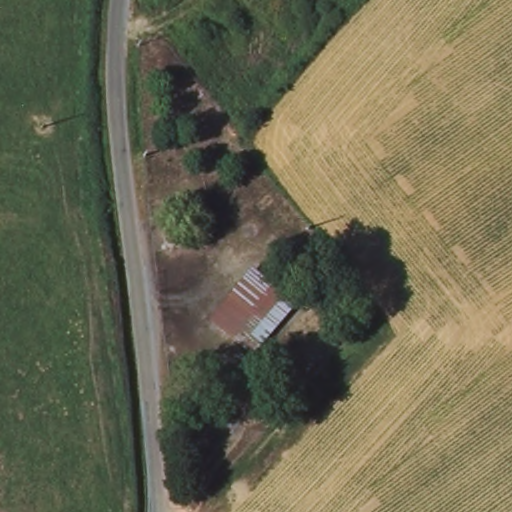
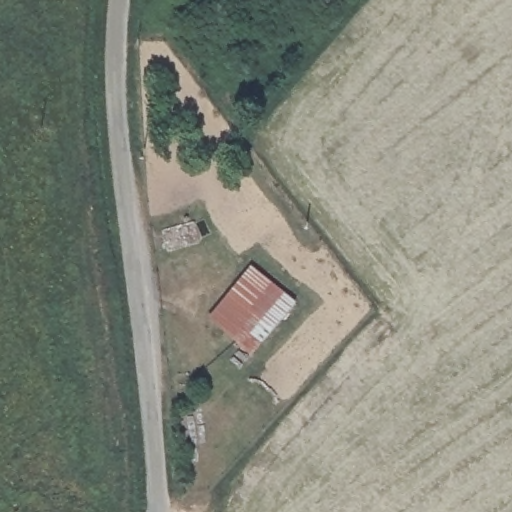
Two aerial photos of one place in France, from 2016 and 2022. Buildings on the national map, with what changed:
unchanged [(207,316),(269,266),(291,293),(303,308),(242,358),(238,353),(207,316)]

